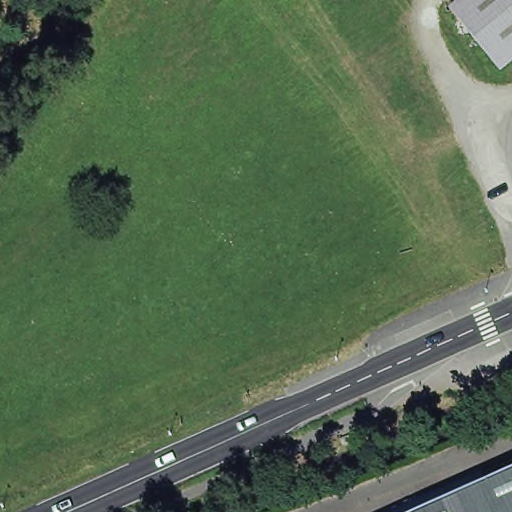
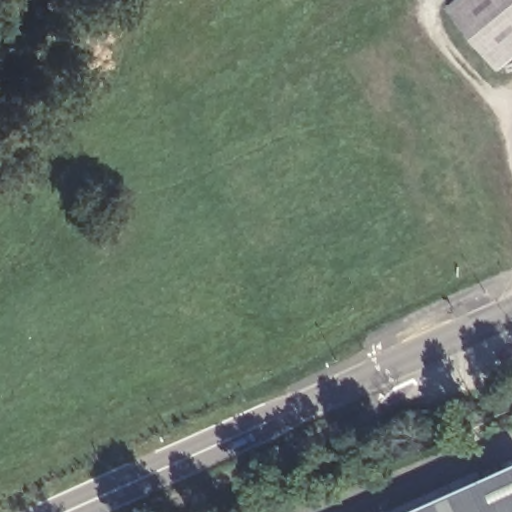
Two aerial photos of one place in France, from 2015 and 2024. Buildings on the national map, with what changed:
unchanged [(475,34),(465,41),(454,27),(463,20),(450,3),(455,0),(512,0),(512,58),(501,67),(475,34)]
unchanged [(512,460),(512,512),(399,512),(403,510),(512,460)]

